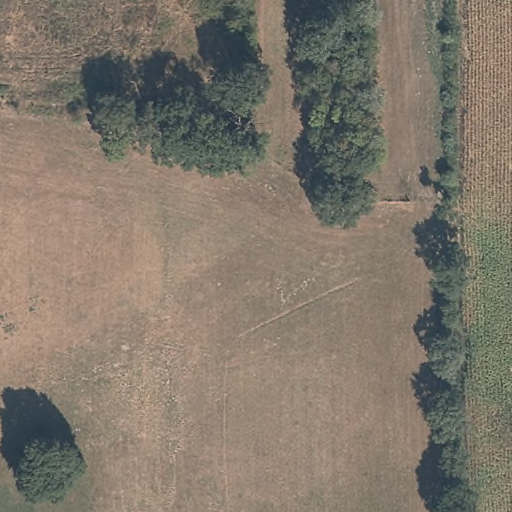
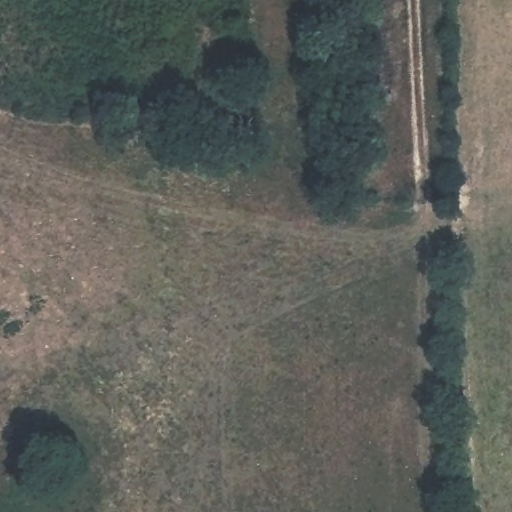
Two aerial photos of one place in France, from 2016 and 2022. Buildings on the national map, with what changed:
[]

